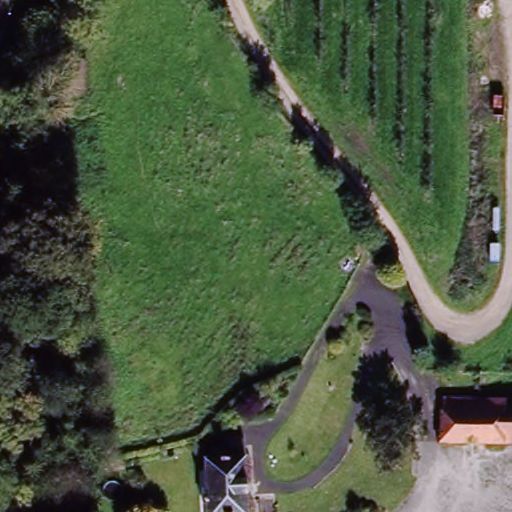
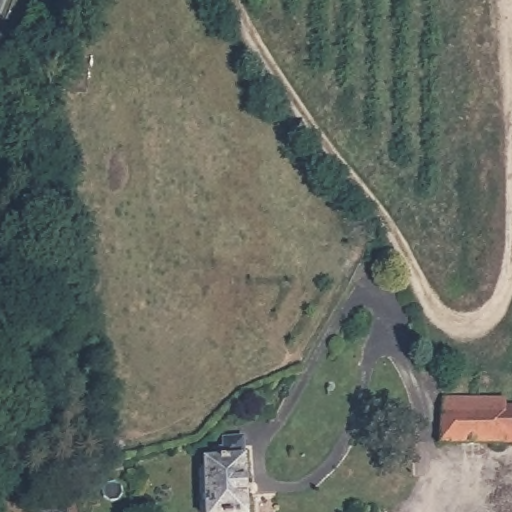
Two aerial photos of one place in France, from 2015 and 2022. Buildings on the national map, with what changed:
unchanged [(512,451),(443,450),(444,407),(469,408),(469,419),(512,420),(512,451)]
unchanged [(252,457),(251,512),(212,512),(211,467),(223,467),(224,455),(252,457)]

